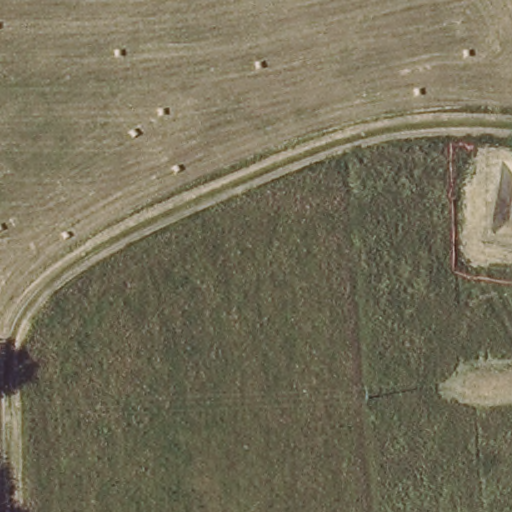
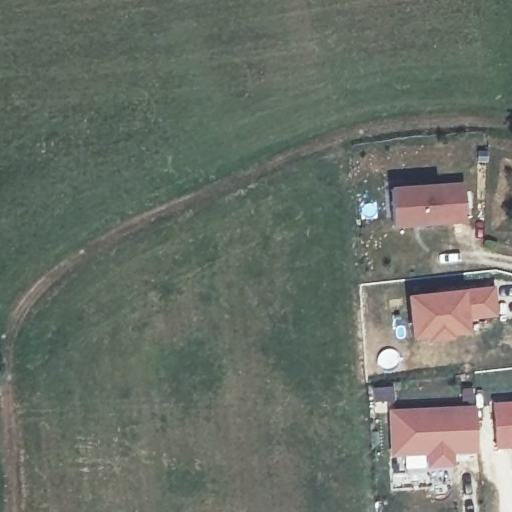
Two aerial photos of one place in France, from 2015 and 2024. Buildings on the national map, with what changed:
new [(467,226),(441,226),(394,230),(390,189),(440,186),(465,185),(467,226)]
new [(495,285),(500,318),(469,321),(470,333),(445,340),(411,341),(405,295),(495,285)]
new [(512,400),(512,449),(495,450),(492,401),(512,400)]
new [(475,410),(477,450),(451,452),(452,465),(430,467),(429,454),(394,457),(392,416),(475,410)]

